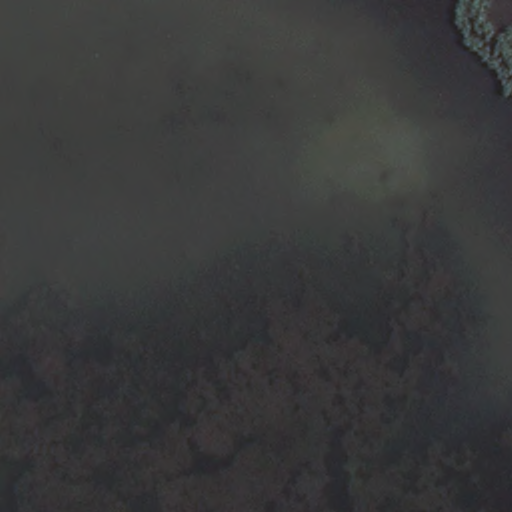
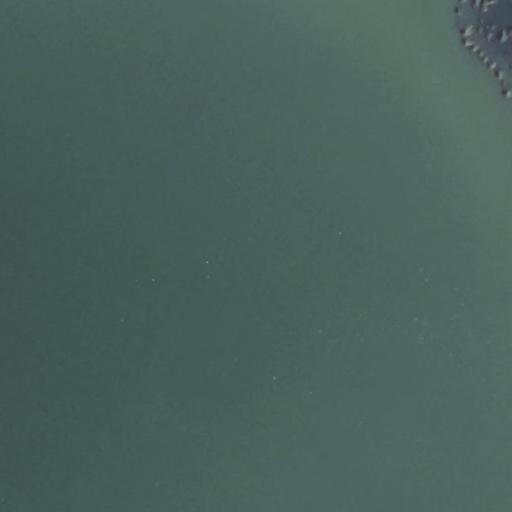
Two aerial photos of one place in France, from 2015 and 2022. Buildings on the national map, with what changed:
[]

